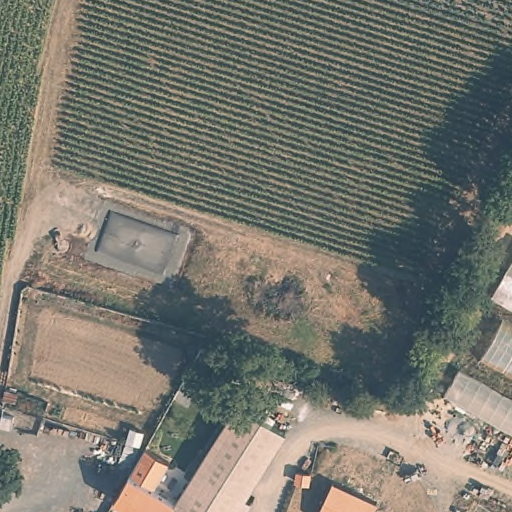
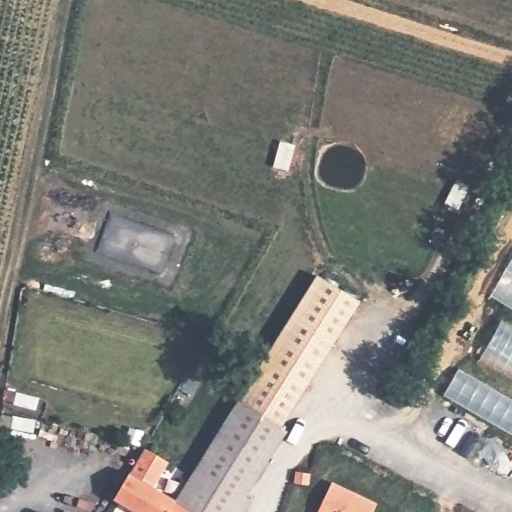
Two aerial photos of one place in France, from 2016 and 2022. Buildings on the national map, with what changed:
unchanged [(490,299),(512,260),(512,312),(490,299)]
new [(240,403),(237,401),(317,274),(360,302),(281,429),(240,403)]
unchanged [(512,325),(512,374),(480,355),(502,319),(512,325)]
unchanged [(512,396),(512,436),(441,396),(460,366),(512,396)]
unchanged [(240,403),(285,433),(249,498),(252,500),(244,512),(195,512),(189,509),(185,506),(178,502),(240,403)]
unchanged [(189,509),(195,512),(126,512),(110,503),(127,473),(142,448),(165,462),(151,487),(178,502),(189,509)]
unchanged [(331,484),(379,504),(375,512),(318,512),(331,484)]

